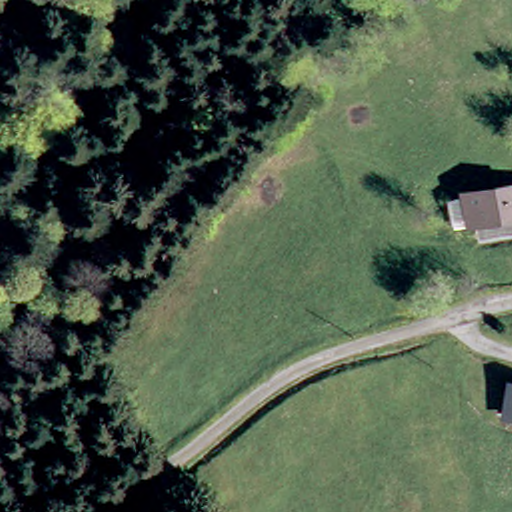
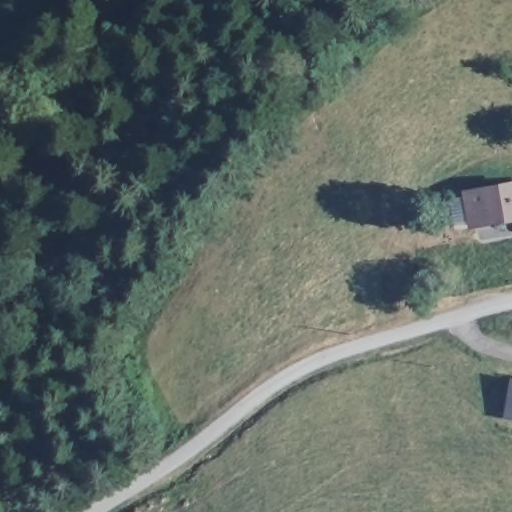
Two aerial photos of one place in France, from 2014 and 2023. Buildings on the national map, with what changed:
unchanged [(512,192),(512,225),(474,229),(470,197),(512,192)]
unchanged [(512,417),(509,417),(512,397),(512,417)]

